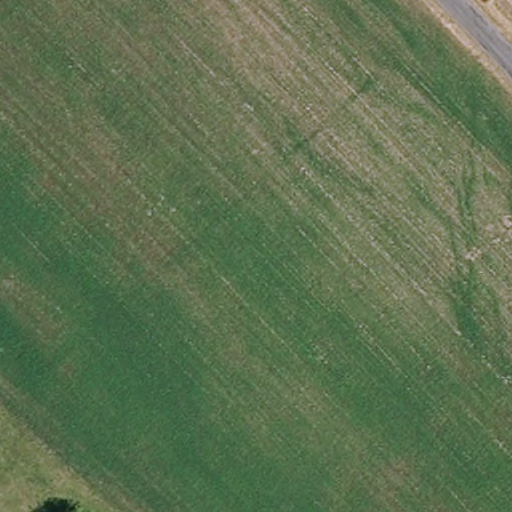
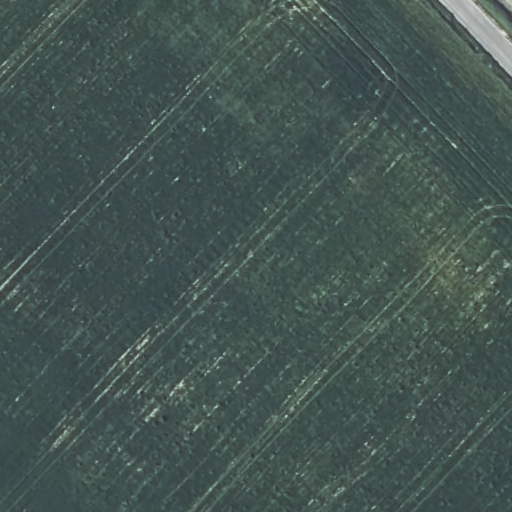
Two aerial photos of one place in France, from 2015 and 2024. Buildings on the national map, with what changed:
[]

